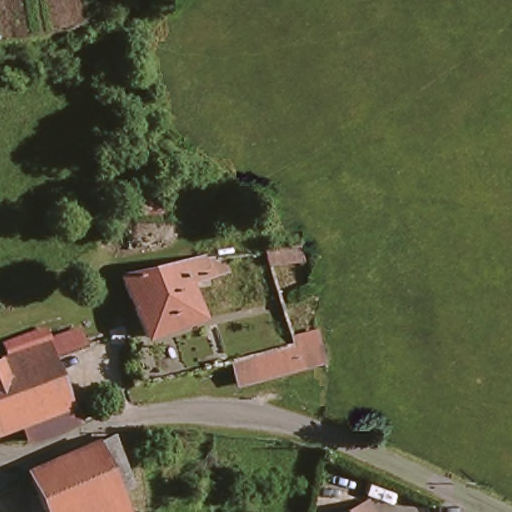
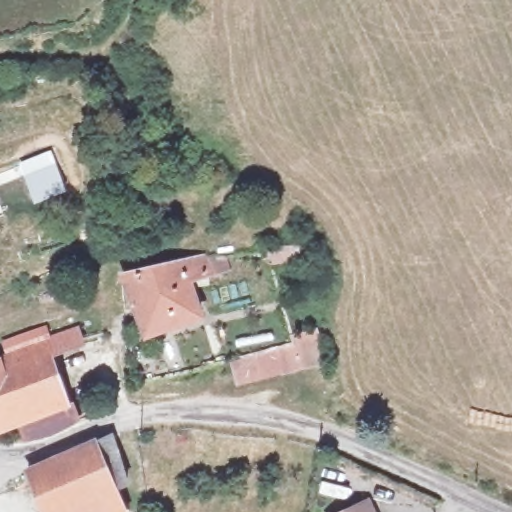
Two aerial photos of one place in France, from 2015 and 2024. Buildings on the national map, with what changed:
new [(51,151),(67,191),(36,205),(19,164),(51,151)]
unchanged [(140,175),(165,176),(168,215),(139,210),(140,175)]
unchanged [(206,249),(226,242),(236,271),(215,278),(197,285),(206,316),(150,334),(129,275),(197,251),(206,249)]
unchanged [(37,410),(0,427),(0,356),(12,351),(2,332),(39,316),(47,333),(80,319),(86,333),(53,347),(82,410),(47,427),(37,410)]
unchanged [(317,332),(325,355),(248,383),(239,360),(295,339),(317,332)]
unchanged [(27,478),(50,465),(90,443),(92,442),(110,440),(137,481),(137,487),(125,495),(134,508),(136,512),(48,512),(27,478)]
unchanged [(371,512),(350,512),(366,503),(371,512)]

